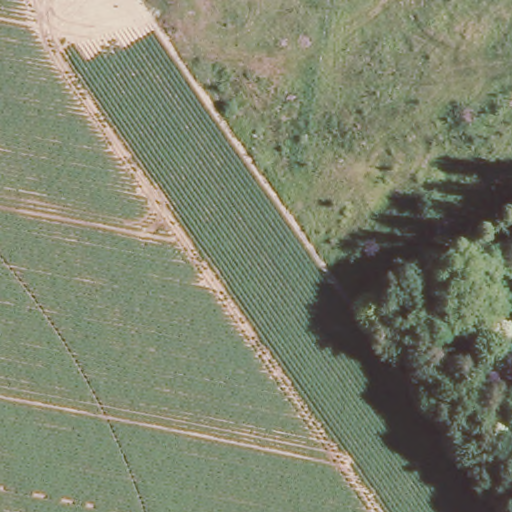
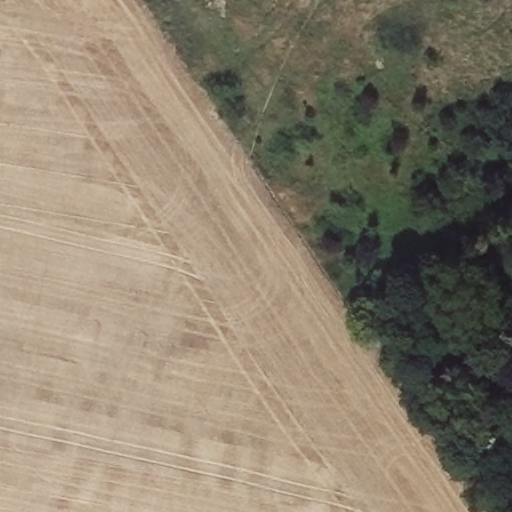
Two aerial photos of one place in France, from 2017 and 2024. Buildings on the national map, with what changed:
unchanged [(512,223),(499,232),(502,236),(471,259),(454,239),(512,198),(512,223)]

